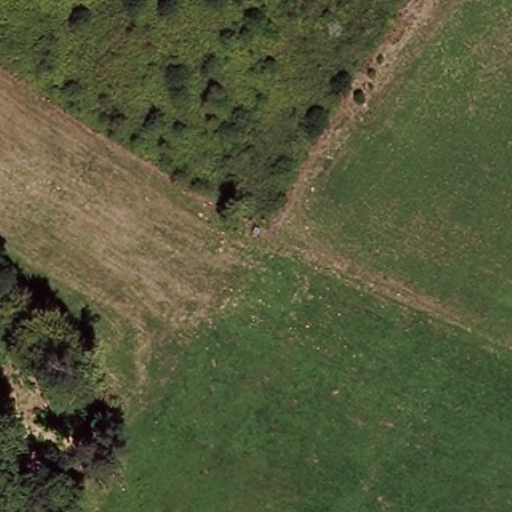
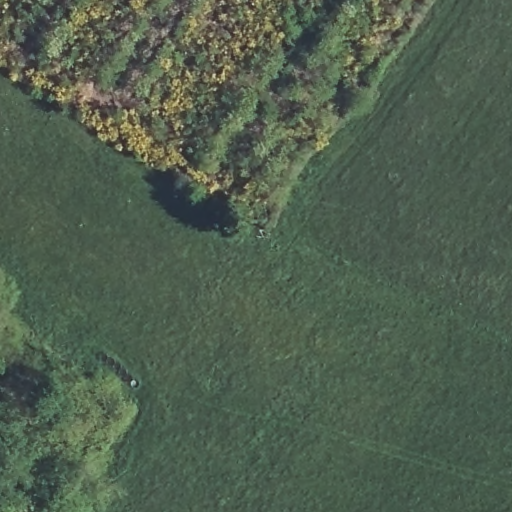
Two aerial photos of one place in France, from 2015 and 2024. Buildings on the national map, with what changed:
[]

